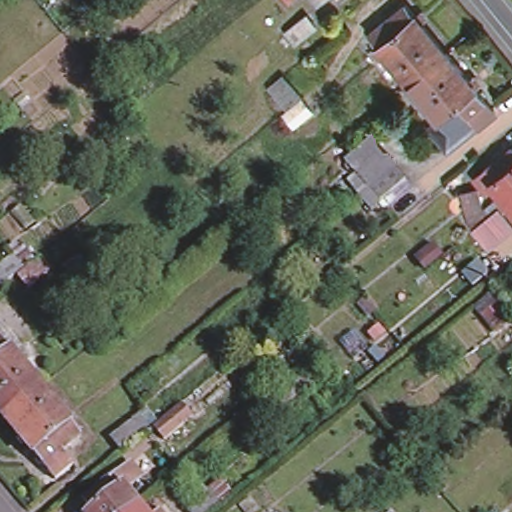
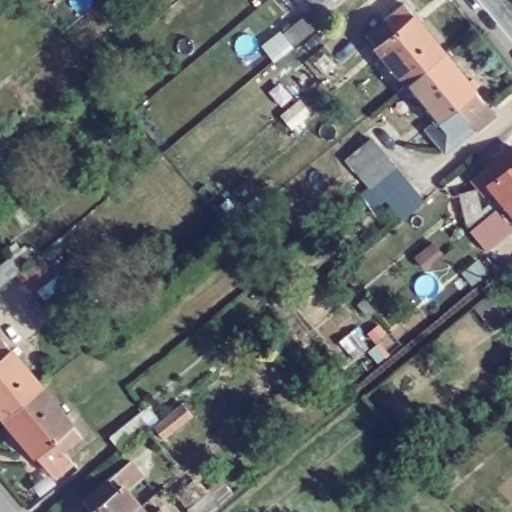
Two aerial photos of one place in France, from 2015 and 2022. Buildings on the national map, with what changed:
unchanged [(369,39),(387,26),(406,10),(416,22),(417,22),(447,57),(428,75),(410,89),(379,52),(380,52),(369,39)]
unchanged [(282,37),(304,20),(314,32),(293,51),(282,37)]
unchanged [(440,125),(410,89),(428,75),(447,57),(477,95),(487,107),(497,121),(478,135),(461,149),(451,137),(440,125)]
unchanged [(313,114),(291,134),(277,117),(282,113),(264,90),(281,74),(313,114)]
unchanged [(369,200),(358,186),(347,172),(373,152),(384,166),(395,180),(369,200)]
unchanged [(491,192),(484,197),(472,182),(509,152),(512,155),(512,200),(503,207),(491,192)]
unchanged [(468,236),(483,223),(469,227),(459,197),(474,192),(484,222),(493,215),(509,235),(499,243),(484,255),(468,236)]
unchanged [(503,207),(512,200),(512,218),(503,207)]
unchanged [(24,270),(23,270),(1,288),(0,286),(0,269),(14,258),(24,270)]
unchanged [(512,307),(502,315),(507,322),(494,332),(475,307),(497,290),(512,307)]
unchanged [(13,361),(14,360),(44,397),(26,411),(25,412),(6,427),(0,419),(0,345),(3,348),(13,361)]
unchanged [(38,462),(37,463),(6,427),(25,412),(26,411),(44,397),(74,433),(73,434),(83,446),(66,460),(75,470),(58,486),(48,475),(38,462)]
unchanged [(183,405),(195,420),(164,444),(153,429),(183,405)]
unchanged [(110,438),(133,420),(144,435),(122,452),(110,438)]
unchanged [(113,473),(120,467),(131,481),(124,487),(116,493),(128,508),(124,512),(82,512),(74,503),(99,483),(113,473)]
unchanged [(205,505),(211,512),(196,512),(205,505)]
unchanged [(128,508),(129,509),(132,512),(124,512),(128,508)]

